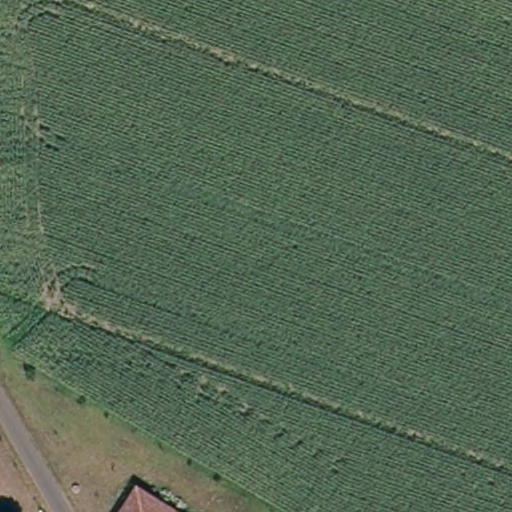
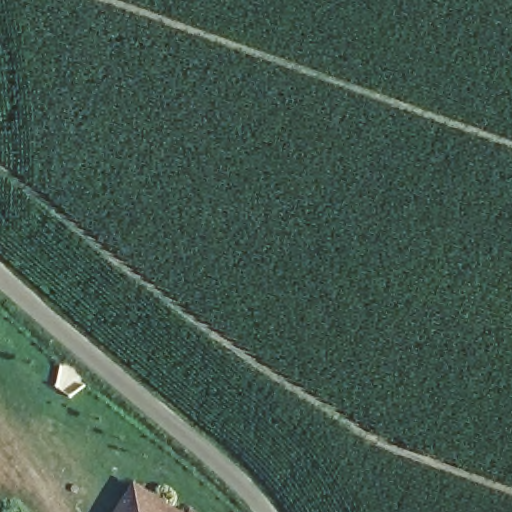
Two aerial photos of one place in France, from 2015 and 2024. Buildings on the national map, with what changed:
unchanged [(139,490),(175,512),(123,512),(139,490)]
unchanged [(113,511),(115,512),(112,512),(113,511)]

